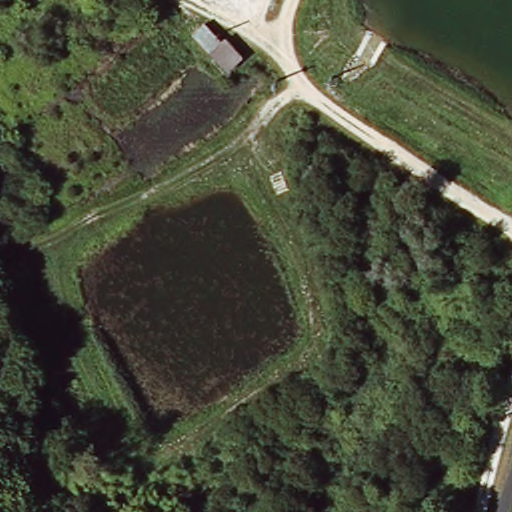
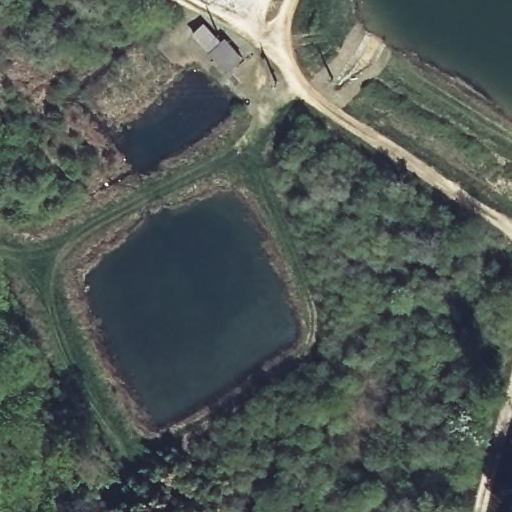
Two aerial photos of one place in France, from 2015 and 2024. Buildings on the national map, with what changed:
unchanged [(197,36),(211,23),(249,58),(234,72),(197,36)]

